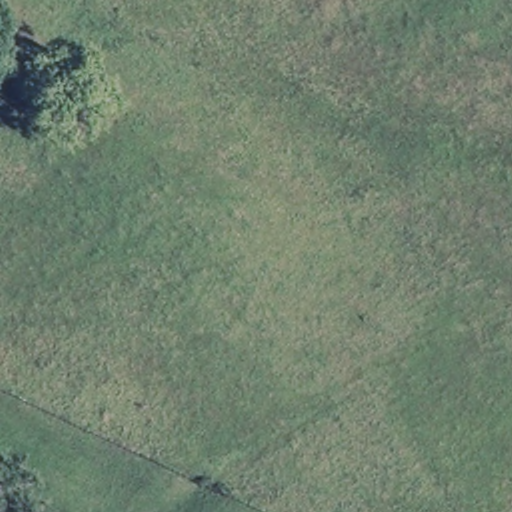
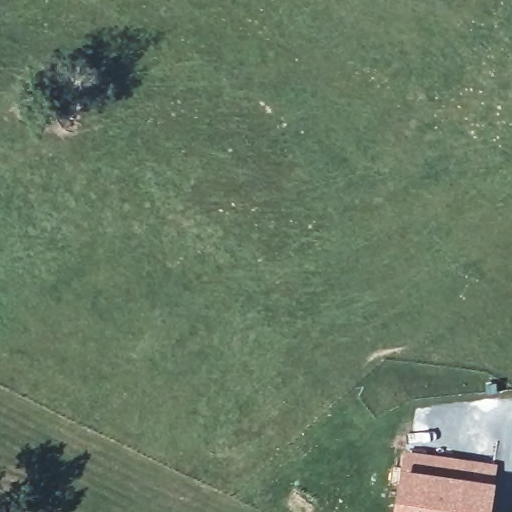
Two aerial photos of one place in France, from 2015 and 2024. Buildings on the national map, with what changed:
new [(496,463),(494,483),(490,512),(395,512),(402,468),(405,450),(496,463)]

